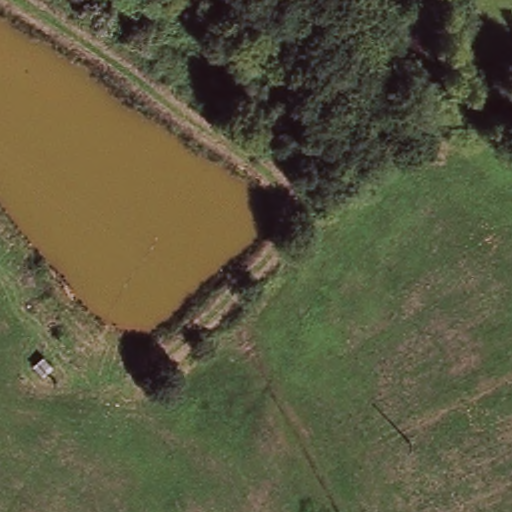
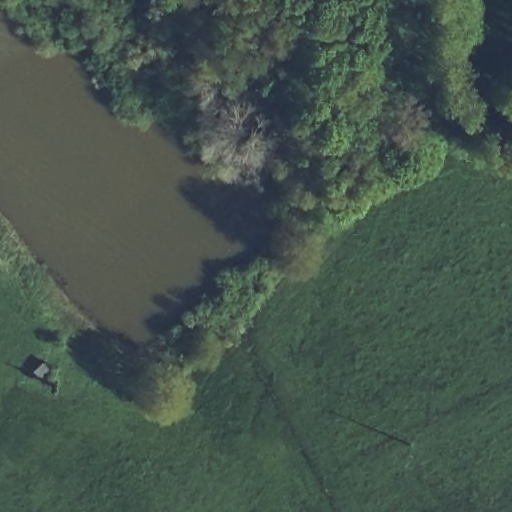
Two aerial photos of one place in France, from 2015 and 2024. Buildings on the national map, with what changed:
unchanged [(43,360),(53,365),(46,377),(37,370),(43,360)]

